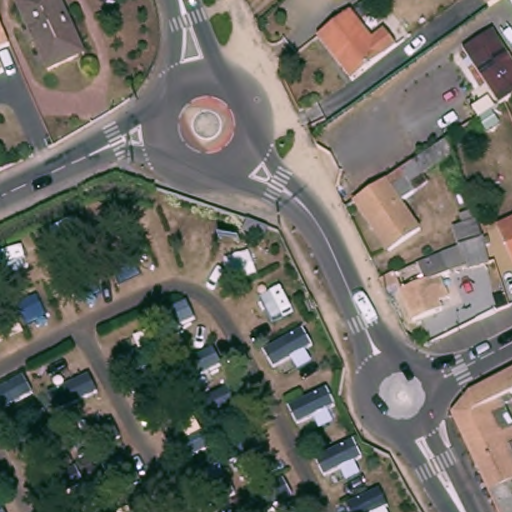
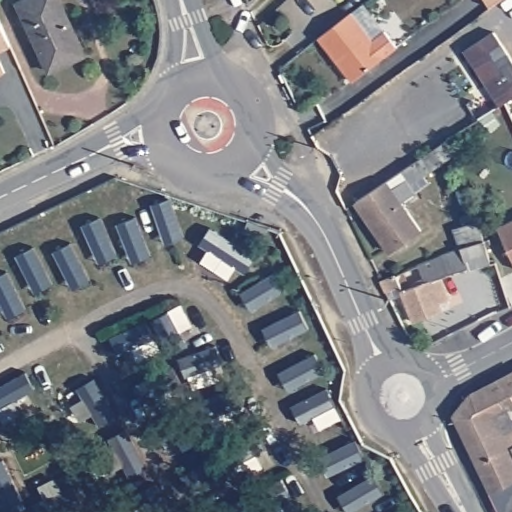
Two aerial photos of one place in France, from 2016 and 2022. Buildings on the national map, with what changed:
unchanged [(85,57),(55,71),(22,2),(27,0),(64,0),(76,24),(90,54),(85,57)]
unchanged [(480,0),(501,0),(490,8),(487,10),(480,0)]
unchanged [(505,7),(512,3),(512,17),(505,7)]
unchanged [(0,52),(9,72),(0,77),(0,11),(15,45),(0,52)]
unchanged [(355,16),(358,15),(380,44),(392,35),(405,50),(392,60),(360,85),(325,40),(355,16)]
unchanged [(500,36),(512,55),(512,91),(503,96),(498,99),(471,54),(500,36)]
unchanged [(458,155),(415,185),(421,194),(405,204),(425,233),(394,254),(360,203),(380,190),(453,140),(458,155)]
unchanged [(502,225),(512,220),(512,246),(502,225)]
unchanged [(384,282),(400,275),(407,292),(428,283),(421,266),(422,266),(465,249),(459,229),(482,222),(488,241),(494,266),(471,272),(470,268),(446,278),(455,299),(445,303),(447,310),(417,323),(401,288),(390,292),(390,293),(384,282)]
unchanged [(485,475),(481,466),(461,425),(457,415),(476,392),(490,385),(499,380),(512,374),(512,405),(510,406),(512,411),(512,512),(503,512),(485,475)]

